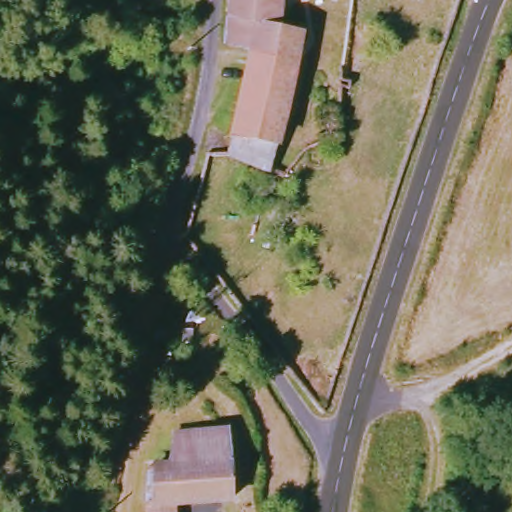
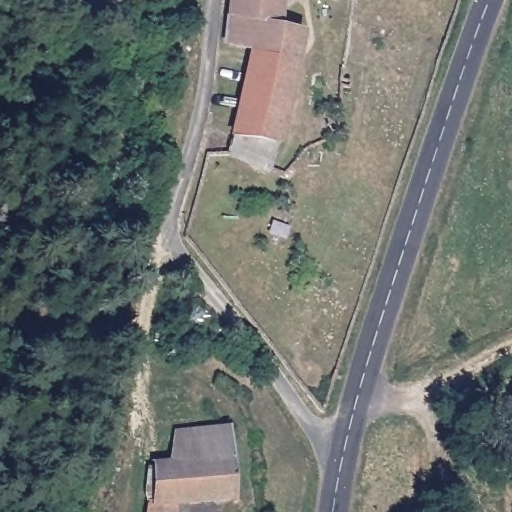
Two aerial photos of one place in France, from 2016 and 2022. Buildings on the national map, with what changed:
unchanged [(304,30),(283,115),(230,101),(250,24),(227,18),(229,0),(278,0),(278,25),(304,30)]
unchanged [(230,101),(283,115),(277,140),(231,139),(220,139),(230,101)]
unchanged [(277,140),(266,175),(224,160),(231,139),(277,140)]
unchanged [(171,507),(171,512),(143,512),(144,506),(146,463),(166,462),(166,432),(226,427),(231,502),(171,507)]

